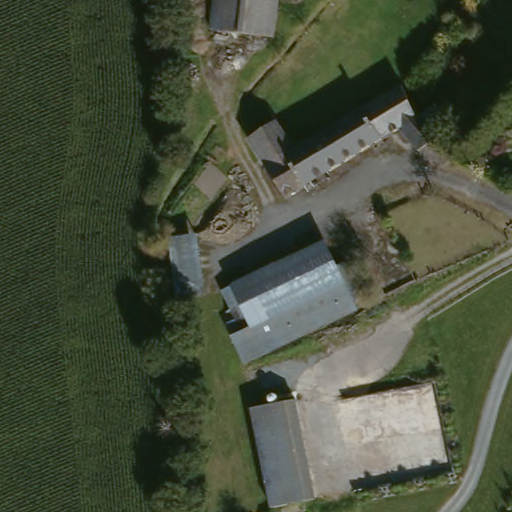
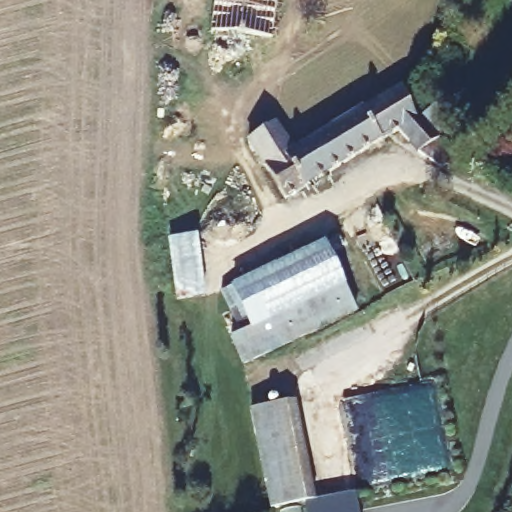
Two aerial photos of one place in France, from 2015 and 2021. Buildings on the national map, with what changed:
unchanged [(273,35),(213,27),(216,0),(278,0),(273,35)]
unchanged [(421,149),(402,127),(290,196),(253,137),(282,119),(299,147),(332,126),(367,106),(406,84),(419,113),(424,112),(427,116),(440,102),(459,122),(444,135),(460,155),(445,165),(421,149)]
unchanged [(200,227),(210,301),(184,304),(174,231),(200,227)]
unchanged [(231,330),(240,325),(227,295),(330,244),(362,313),(248,367),(231,330)]
unchanged [(205,381),(209,412),(193,414),(189,383),(205,381)]
unchanged [(253,414),(299,404),(321,501),(275,512),(253,414)]
new [(355,492),(359,512),(310,512),(308,504),(321,501),(355,492)]

